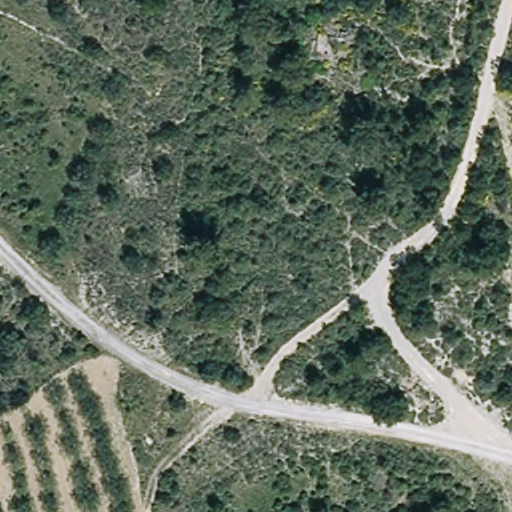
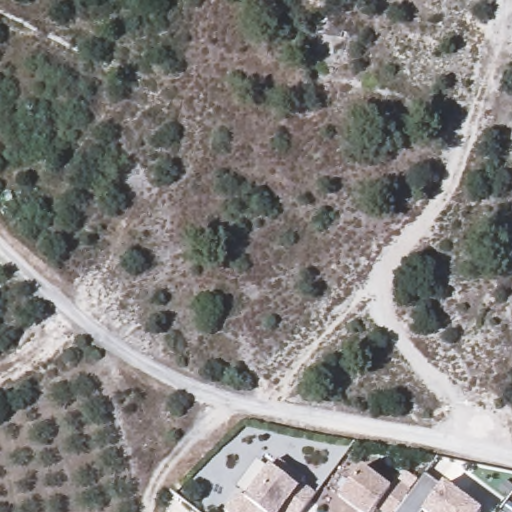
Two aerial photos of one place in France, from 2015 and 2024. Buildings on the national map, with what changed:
new [(238,493),(245,499),(270,467),(278,458),(305,480),(302,483),(315,495),(301,512),(224,512),(238,493)]
new [(362,467),(390,488),(395,481),(410,492),(395,512),(380,512),(377,509),(374,512),(356,512),(339,498),(362,467)]
new [(442,485),(444,482),(482,511),(482,512),(395,512),(410,492),(424,472),(442,485)]

